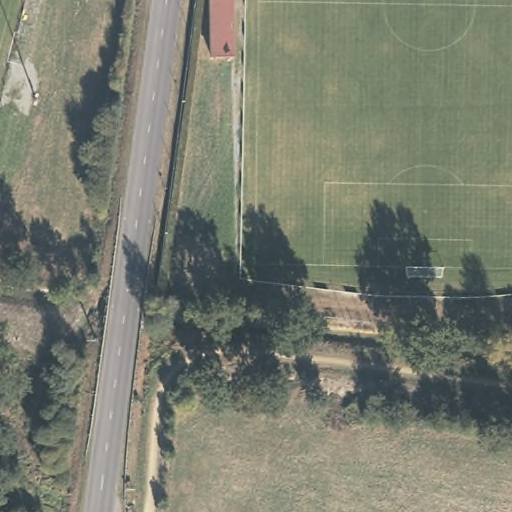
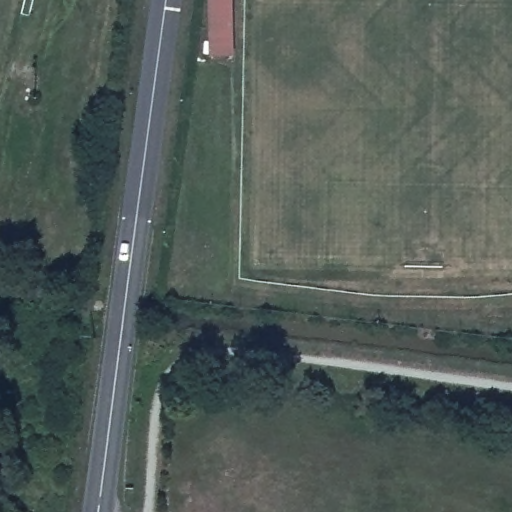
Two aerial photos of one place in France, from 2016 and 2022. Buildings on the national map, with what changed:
unchanged [(208,56),(207,0),(227,0),(230,55),(208,56)]

